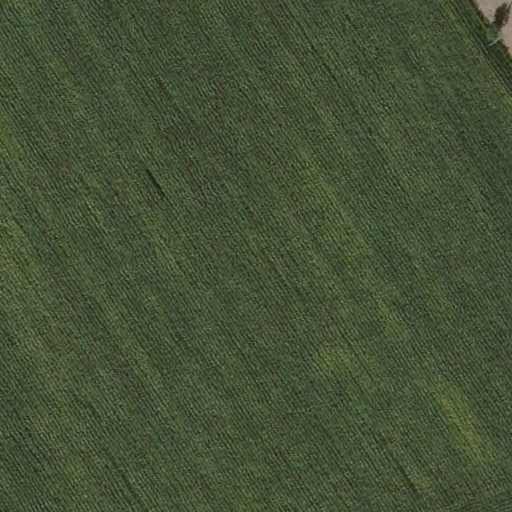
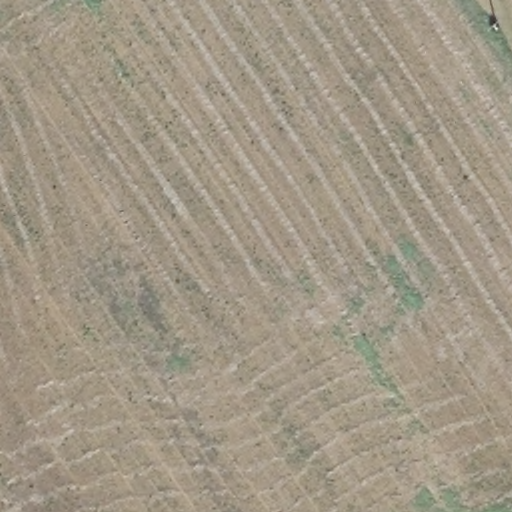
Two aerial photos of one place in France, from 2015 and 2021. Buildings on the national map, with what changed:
[]

